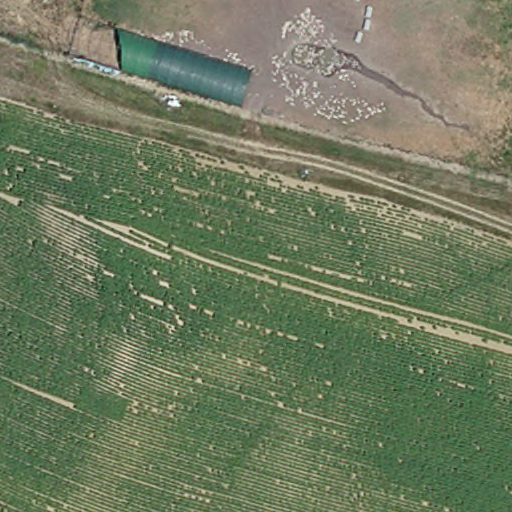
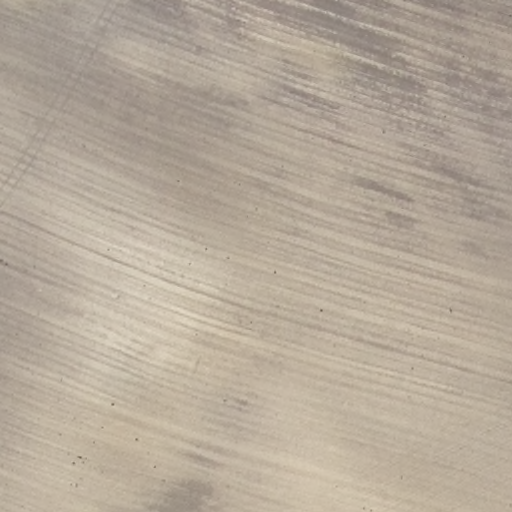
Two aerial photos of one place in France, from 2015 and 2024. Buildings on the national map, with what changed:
demolished [(85,21),(255,73),(244,109),(75,57),(85,21)]

